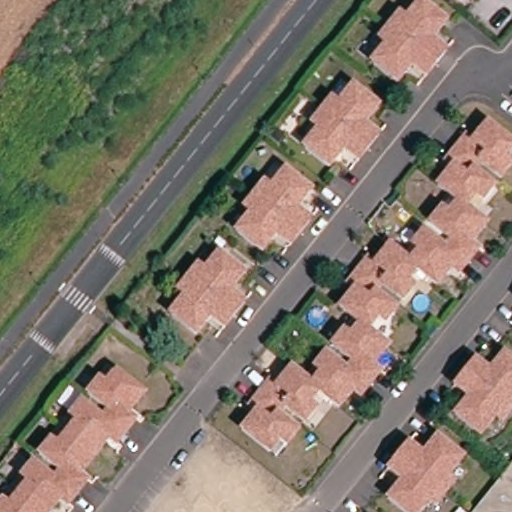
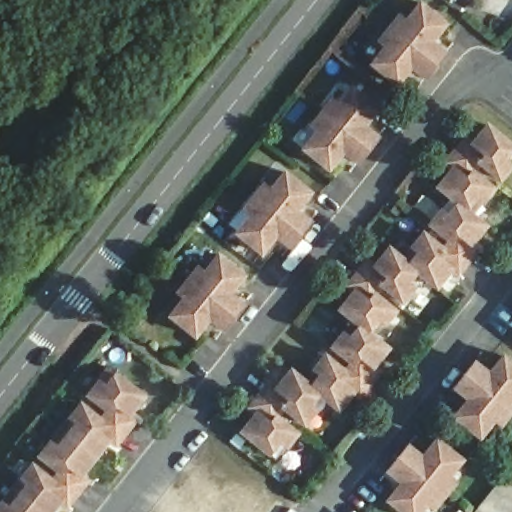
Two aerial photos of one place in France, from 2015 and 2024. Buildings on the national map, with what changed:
unchanged [(385,41),(405,15),(411,20),(425,3),(451,23),(437,41),(451,52),(431,77),(417,66),(402,83),(377,63),(391,45),(385,41)]
unchanged [(312,129),(333,104),(339,109),(352,91),(378,112),(365,129),(378,141),(359,166),(345,154),(331,172),(305,151),(318,134),(312,129)]
unchanged [(450,170),(443,165),(462,139),(470,145),(483,127),(512,149),(502,161),(509,166),(498,181),(477,165),(471,173),(491,189),(480,203),(473,198),(464,210),(456,203),(436,188),(450,170)]
unchanged [(317,195),(302,213),(317,224),(297,249),(282,238),(268,256),(243,235),(257,218),(251,213),(271,188),(277,192),(291,175),(317,195)]
unchanged [(417,252),(411,247),(422,233),(442,248),(448,240),(428,224),(440,210),(447,215),(456,203),(464,210),(484,226),(470,243),(477,249),(457,274),(450,268),(436,286),(416,270),(408,264),(417,252)]
unchanged [(340,308),(353,290),(347,285),(367,260),(373,265),(387,247),(408,264),(416,270),(406,281),(413,287),(402,301),(382,285),(375,294),(395,310),(383,324),(377,318),(367,330),(360,324),(340,308)]
unchanged [(246,272),(232,290),(247,301),(227,326),(212,315),(198,333),(172,312),(186,295),(181,290),(201,265),(207,269),(221,252),(246,272)]
unchanged [(351,336),(360,324),(367,330),(388,346),(374,364),(381,369),(361,394),(354,389),(341,407),(319,390),(312,384),(322,373),(315,367),(326,353),(346,369),(352,360),(332,345),(344,331),(351,336)]
unchanged [(496,417),(482,435),(456,414),(470,396),(456,385),(476,360),(490,371),(504,354),(512,360),(512,409),(502,422),(496,417)]
unchanged [(310,402),(316,407),(305,421),(285,405),(278,414),(298,430),(287,444),(281,439),(271,450),(243,428),(257,410),(250,405),(270,380),(277,385),(291,367),(312,384),(319,390),(310,402)]
unchanged [(140,396),(126,414),(132,419),(112,444),(106,439),(77,474),(84,479),(64,504),(57,499),(47,512),(0,512),(0,501),(6,506),(25,482),(18,477),(29,463),(49,479),(56,470),(36,454),(47,440),(54,445),(72,422),(66,417),(77,403),(97,418),(104,410),(84,394),(96,380),(102,385),(112,374),(140,396)]
unchanged [(436,510),(430,505),(424,512),(402,512),(390,502),(404,484),(390,473),(410,448),(424,459),(438,442),(464,462),(450,480),(456,484),(436,510)]
unchanged [(512,512),(483,512),(512,476),(512,512)]

